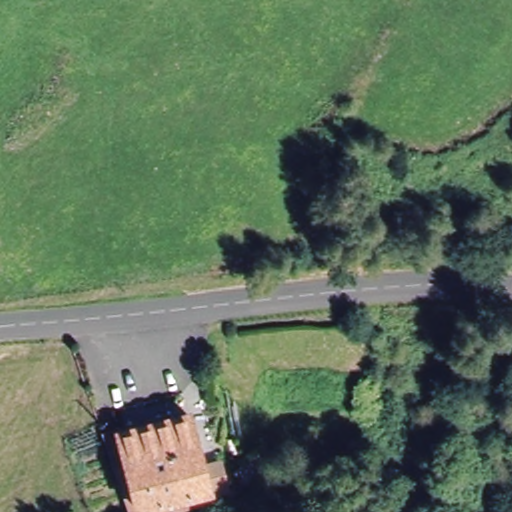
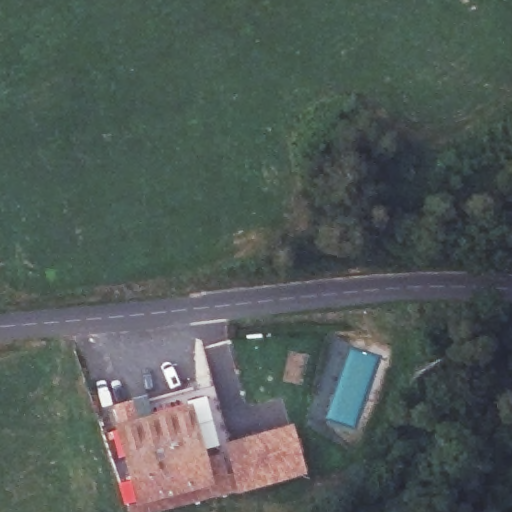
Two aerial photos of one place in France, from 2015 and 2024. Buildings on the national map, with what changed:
unchanged [(132,512),(116,465),(129,460),(120,434),(190,413),(205,462),(221,457),(232,492),(212,496),(146,512),(132,512)]
new [(306,479),(234,499),(232,492),(221,457),(227,456),(224,446),(292,428),(306,479)]

